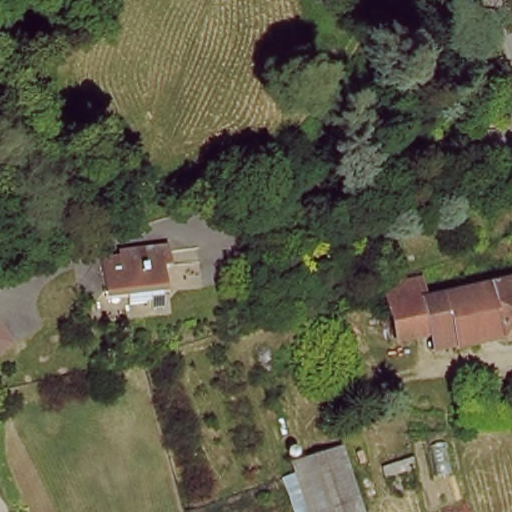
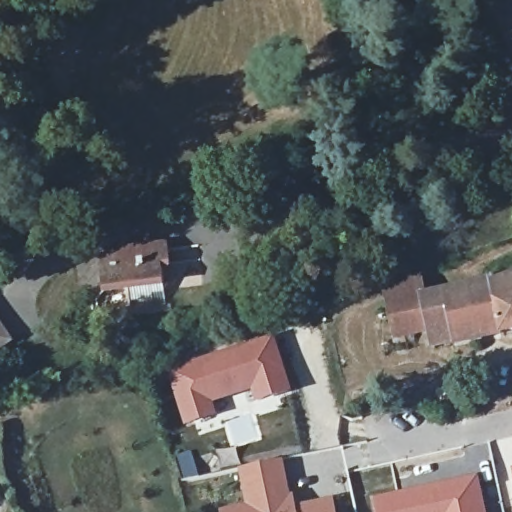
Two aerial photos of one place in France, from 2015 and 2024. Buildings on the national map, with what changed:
unchanged [(165,236),(168,255),(161,256),(168,298),(154,302),(152,294),(127,298),(125,286),(103,290),(97,255),(120,252),(119,245),(165,236)]
unchanged [(422,273),(427,300),(424,301),(391,308),(385,282),(422,273)]
unchanged [(433,356),(430,336),(424,301),(427,300),(447,295),(453,293),(505,281),(512,279),(512,339),(433,356)]
unchanged [(430,336),(399,342),(391,308),(424,301),(430,336)]
unchanged [(0,352),(0,336),(2,335),(0,332),(0,318),(15,342),(0,352)]
unchanged [(0,336),(0,332),(2,335),(0,336)]
new [(273,335),(292,391),(254,405),(250,393),(214,405),(217,416),(184,427),(161,366),(273,335)]
demolished [(361,512),(311,512),(296,462),(342,448),(361,512)]
new [(234,468),(282,457),(296,506),(333,497),(336,512),(216,512),(215,507),(241,500),(234,468)]
new [(510,468),(512,468),(512,480),(510,468)]
new [(486,512),(372,512),(369,494),(477,475),(486,512)]

